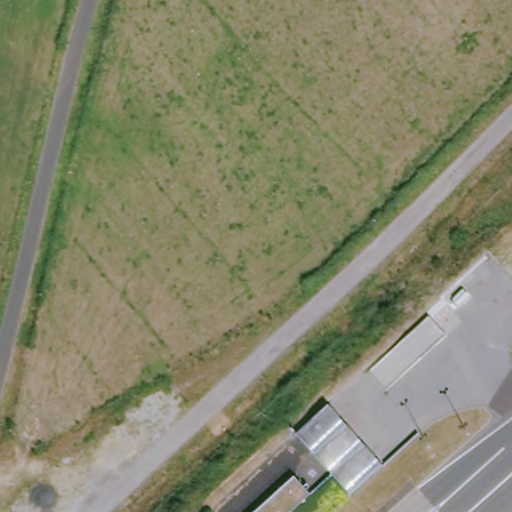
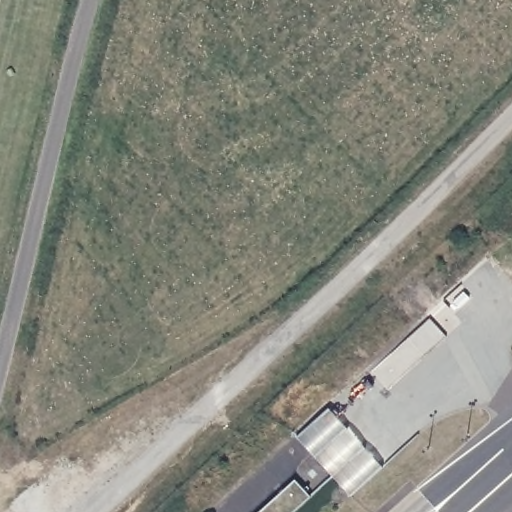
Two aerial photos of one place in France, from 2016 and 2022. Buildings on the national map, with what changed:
unchanged [(445,336),(390,390),(370,375),(431,316),(445,336)]
unchanged [(385,470),(350,500),(295,435),(330,405),(385,470)]
unchanged [(310,500),(296,512),(256,512),(295,480),(310,500)]

